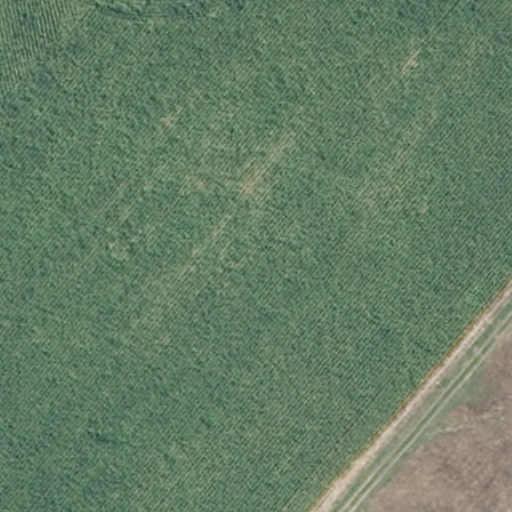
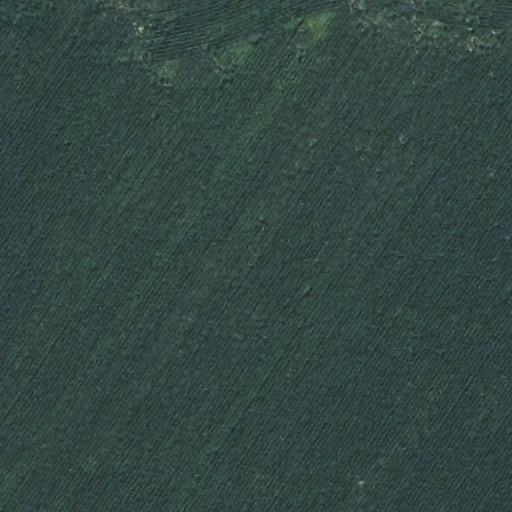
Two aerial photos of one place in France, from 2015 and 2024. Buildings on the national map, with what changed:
[]

